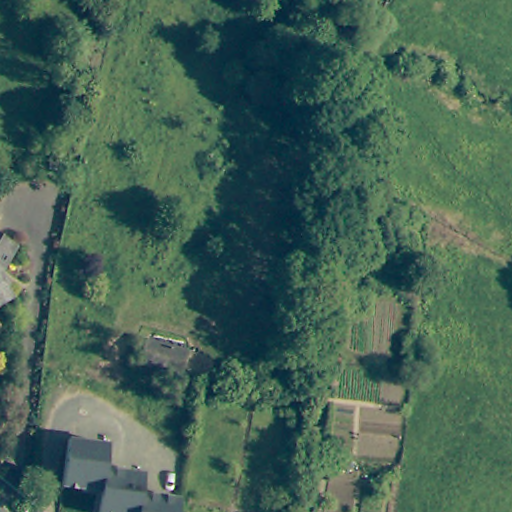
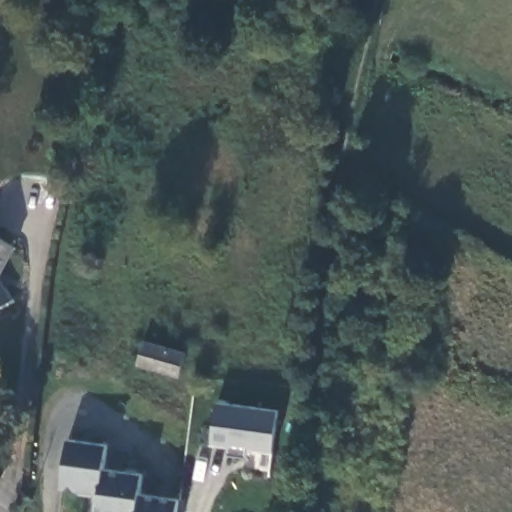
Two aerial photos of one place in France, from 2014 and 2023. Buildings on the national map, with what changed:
unchanged [(20,252),(4,277),(17,300),(0,312),(0,240),(20,252)]
unchanged [(144,343),(188,352),(182,377),(139,367),(144,343)]
new [(274,452),(249,449),(249,457),(229,454),(230,447),(212,445),(218,401),(279,408),(274,452)]
unchanged [(109,473),(148,477),(146,497),(185,501),(184,512),(104,512),(106,492),(86,490),(85,494),(67,492),(72,444),(112,448),(109,473)]

